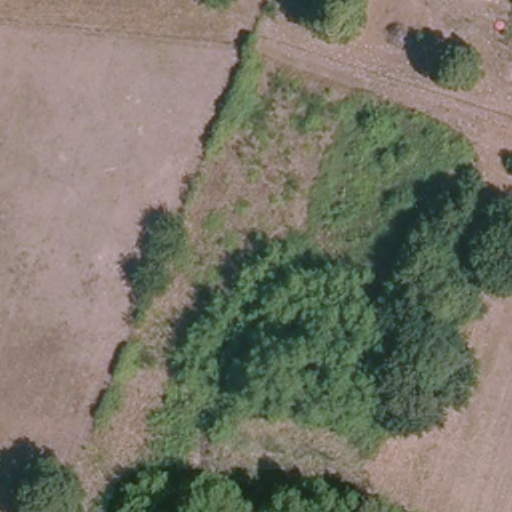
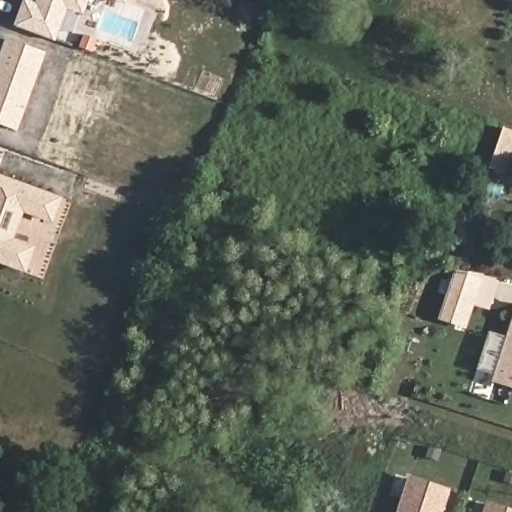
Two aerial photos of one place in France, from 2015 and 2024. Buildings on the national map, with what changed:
new [(33,0),(36,1),(36,0),(89,0),(84,15),(68,9),(55,41),(14,26),(22,0),(33,0)]
new [(111,0),(127,0),(125,5),(111,0)]
new [(46,53),(17,131),(0,125),(0,52),(4,39),(46,53)]
new [(511,127),(512,128),(512,173),(512,175),(497,170),(511,127)]
new [(53,223),(24,214),(14,238),(36,246),(27,273),(0,263),(0,175),(63,197),(53,223)]
new [(459,270),(487,275),(482,290),(469,327),(444,318),(456,281),(459,270)]
new [(512,343),(512,383),(500,379),(512,343)]
new [(416,476),(453,488),(445,512),(404,512),(416,476)]
new [(493,503),(512,510),(512,512),(490,512),(493,503)]

